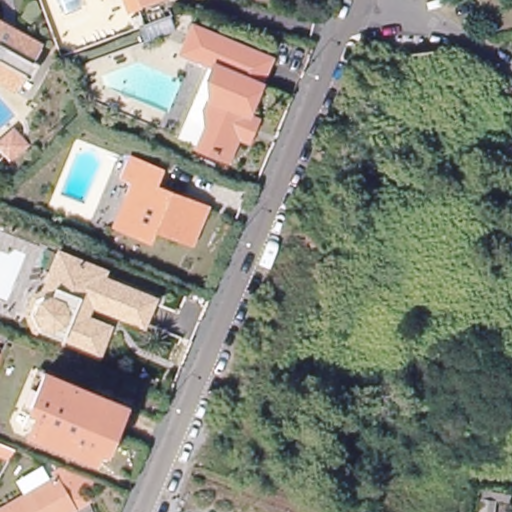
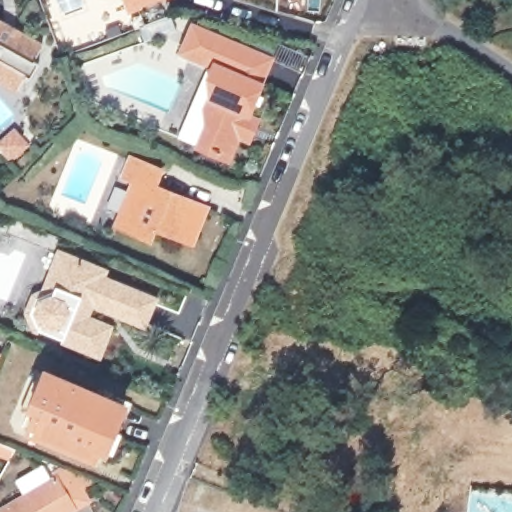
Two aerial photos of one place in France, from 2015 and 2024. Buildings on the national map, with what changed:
unchanged [(141,0),(127,5),(126,0),(141,0)]
unchanged [(130,14),(140,10),(144,21),(135,25),(130,14)]
unchanged [(206,71),(211,59),(177,47),(187,20),(265,52),(242,107),(252,111),(245,130),(235,126),(225,150),(195,137),(204,117),(201,100),(207,88),(208,86),(206,71)]
unchanged [(1,22),(40,45),(32,57),(37,60),(29,76),(24,73),(16,86),(0,77),(0,24),(0,25),(1,22)]
unchanged [(154,182),(206,203),(191,238),(157,224),(152,236),(106,217),(132,153),(161,165),(154,182)]
unchanged [(44,325),(46,318),(42,308),(46,297),(57,292),(74,252),(99,262),(95,270),(145,290),(144,293),(156,298),(148,318),(96,297),(89,313),(105,321),(110,332),(106,341),(95,346),(85,342),(68,335),(44,325)]
unchanged [(130,402),(118,428),(125,432),(116,450),(103,444),(98,456),(32,428),(41,407),(34,405),(50,367),(130,402)]
unchanged [(70,500),(76,512),(75,512),(3,512),(45,488),(42,484),(52,478),(84,492),(70,500)]
unchanged [(493,502),(493,512),(480,512),(481,501),(493,502)]

